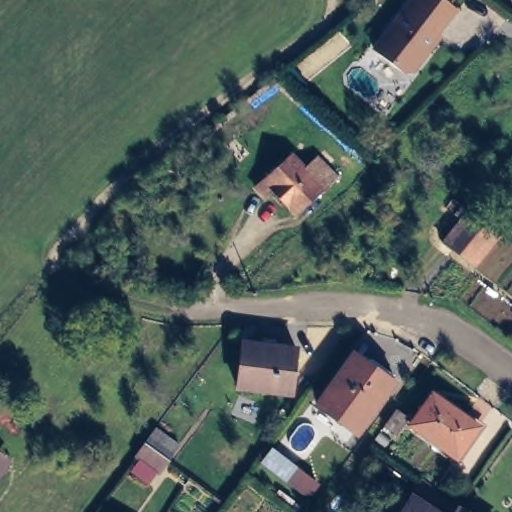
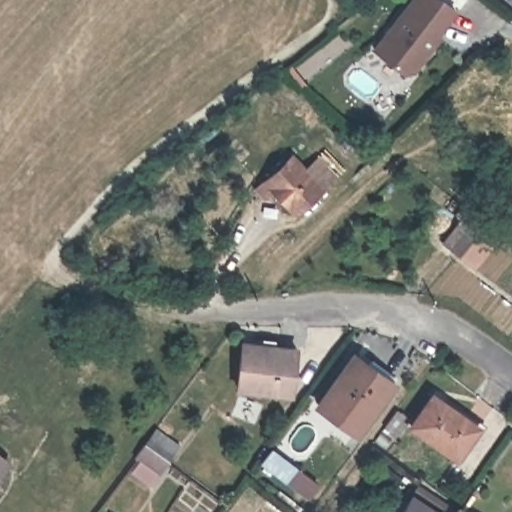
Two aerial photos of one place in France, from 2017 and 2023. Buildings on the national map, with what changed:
unchanged [(422,54),(411,67),(401,69),(371,44),(406,0),(443,0),(450,5),(431,30),(438,35),(422,54)]
unchanged [(263,183),(273,175),(300,150),(314,164),(326,153),(346,173),(304,209),(282,186),(273,194),(263,183)]
unchanged [(479,268),(446,243),(472,212),(504,237),(479,268)]
unchanged [(241,388),(246,344),(301,349),(294,395),(241,388)]
unchanged [(330,398),(361,353),(397,378),(364,424),(330,398)]
unchanged [(419,423),(441,395),(487,427),(465,457),(419,423)]
unchanged [(419,419),(405,437),(393,428),(406,410),(419,419)]
unchanged [(148,436),(153,429),(178,445),(168,460),(167,459),(156,473),(133,456),(143,442),(148,436)]
unchanged [(4,464),(0,470),(0,461),(4,464)]
unchanged [(286,483),(295,469),(317,486),(308,498),(286,483)]
unchanged [(429,506),(437,512),(406,512),(415,497),(429,506)]
unchanged [(459,512),(462,508),(466,512),(459,512)]

